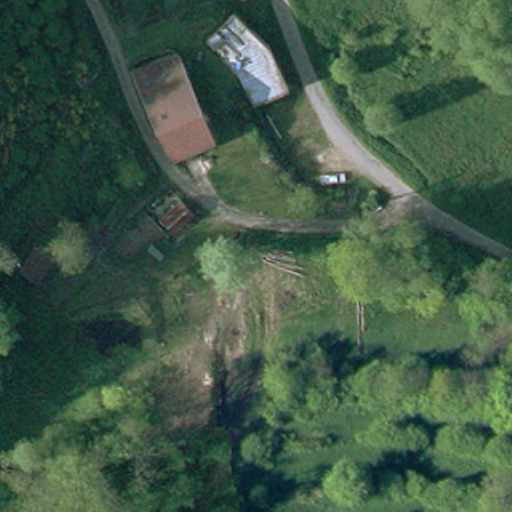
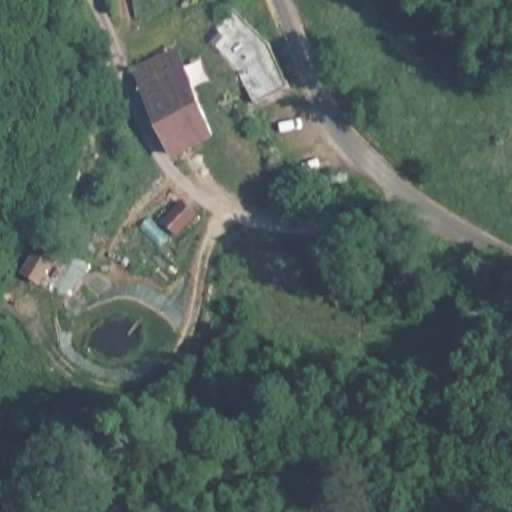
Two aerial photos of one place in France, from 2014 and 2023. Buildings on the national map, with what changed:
unchanged [(223,13),(259,45),(282,86),(247,104),(230,73),(212,58),(195,44),(203,36),(223,13)]
unchanged [(207,128),(167,150),(131,84),(174,62),(207,128)]
unchanged [(158,222),(178,197),(193,209),(173,234),(158,222)]
unchanged [(49,271),(37,299),(22,292),(34,265),(49,271)]

